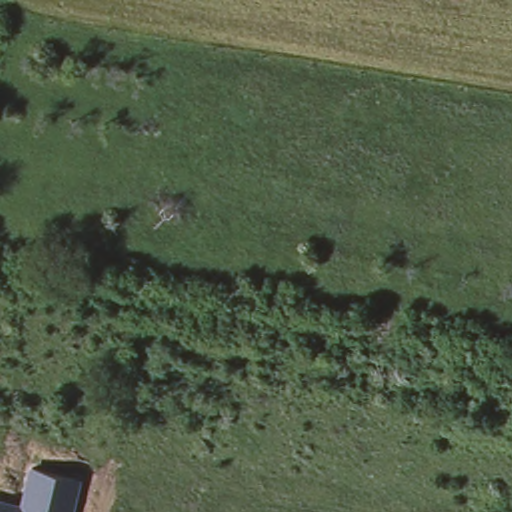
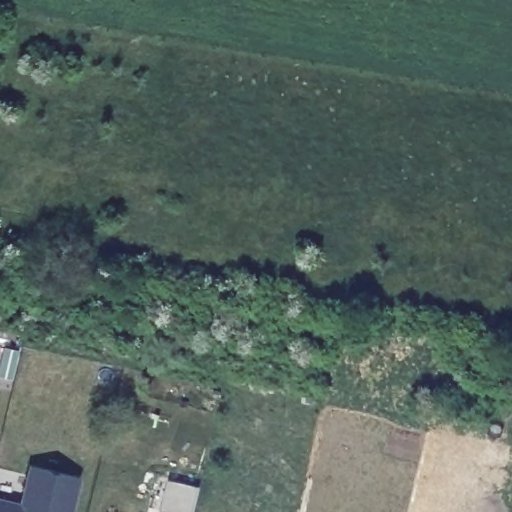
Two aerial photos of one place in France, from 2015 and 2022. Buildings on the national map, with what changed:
unchanged [(23,502),(31,465),(82,478),(74,512),(0,512),(0,496),(23,502)]
new [(195,512),(163,512),(161,511),(170,480),(200,488),(195,512)]

